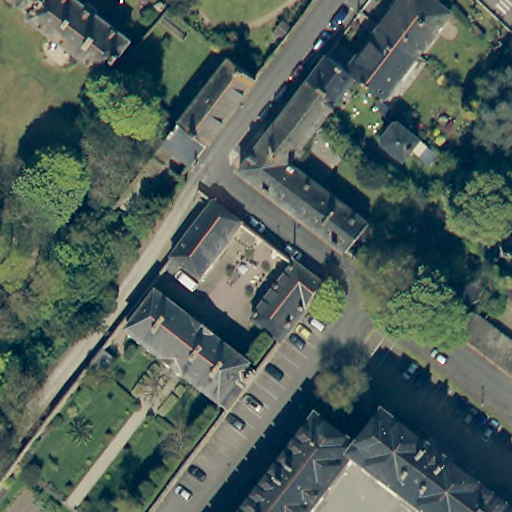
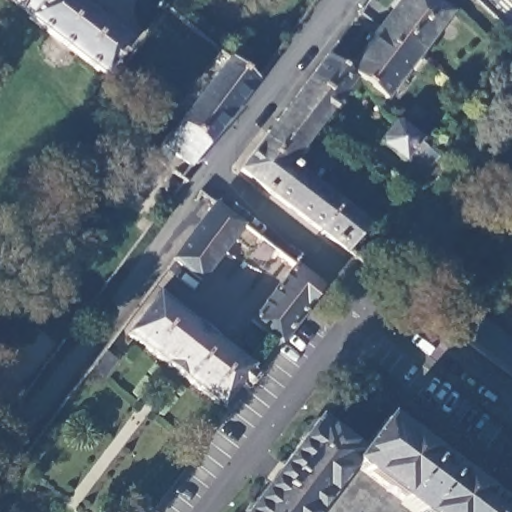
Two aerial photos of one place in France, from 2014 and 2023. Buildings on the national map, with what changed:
unchanged [(66,67),(57,67),(41,55),(41,47),(47,36),(26,19),(28,15),(10,0),(74,0),(130,42),(103,77),(75,56),(66,67)]
unchanged [(403,0),(434,0),(452,15),(420,57),(382,27),(403,0)]
unchanged [(386,100),(381,96),(357,77),(348,70),(382,27),(420,57),(386,100)]
unchanged [(371,222),(349,252),(242,170),(299,96),(312,78),(330,56),(348,70),(357,77),(340,100),(327,117),(292,162),(371,222)]
unchanged [(176,132),(182,124),(200,101),(195,97),(210,78),(214,82),(233,58),(259,79),(195,167),(165,145),(176,132)]
unchanged [(404,161),(381,142),(396,122),(420,141),(404,161)]
unchanged [(261,240),(253,249),(245,250),(231,239),(198,281),(178,266),(171,274),(163,268),(212,202),(261,240)]
unchanged [(220,412),(121,335),(149,295),(237,363),(261,333),(245,320),(288,264),(316,285),(220,412)]
unchanged [(510,377),(465,343),(451,333),(462,322),(474,332),(483,321),(512,342),(512,375),(510,377)]
unchanged [(117,361),(105,376),(94,366),(105,351),(117,361)]
unchanged [(182,437),(204,410),(215,419),(194,447),(182,437)]
unchanged [(319,421),(361,454),(385,422),(503,512),(416,512),(354,465),(317,512),(248,512),(319,421)]

